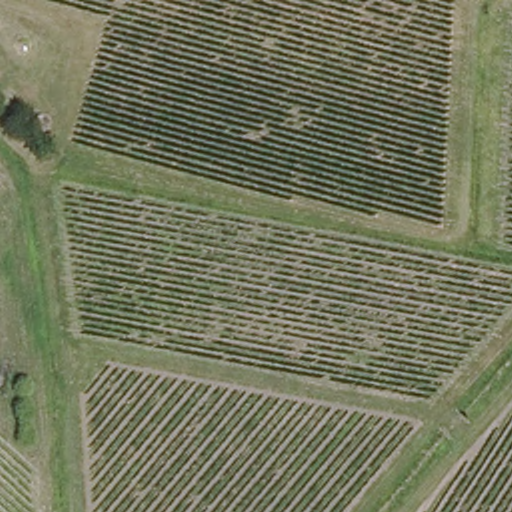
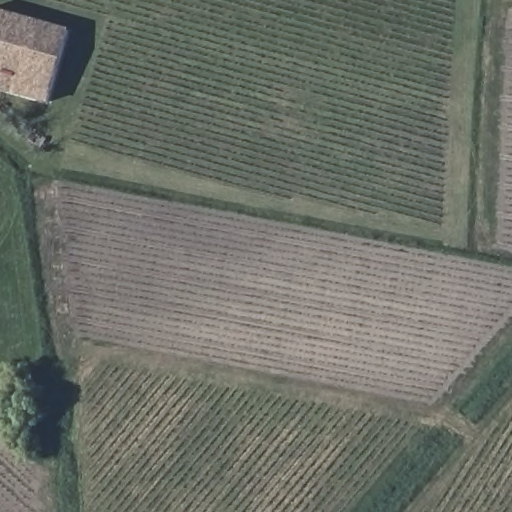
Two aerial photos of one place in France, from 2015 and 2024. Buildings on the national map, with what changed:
new [(0,92),(0,13),(61,32),(40,105),(0,92)]

